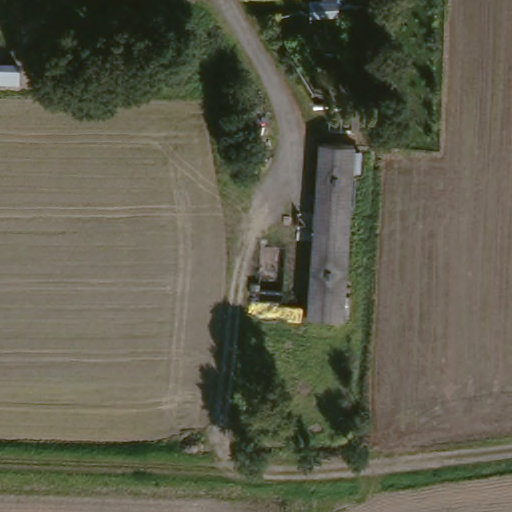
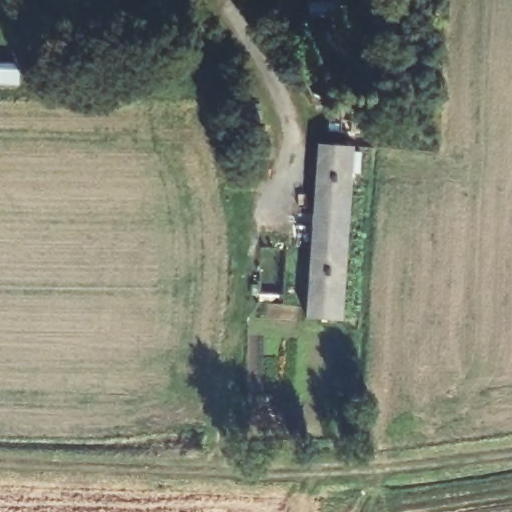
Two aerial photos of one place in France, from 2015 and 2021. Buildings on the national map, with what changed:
unchanged [(321,150),(353,151),(340,322),(308,320),(321,150)]

